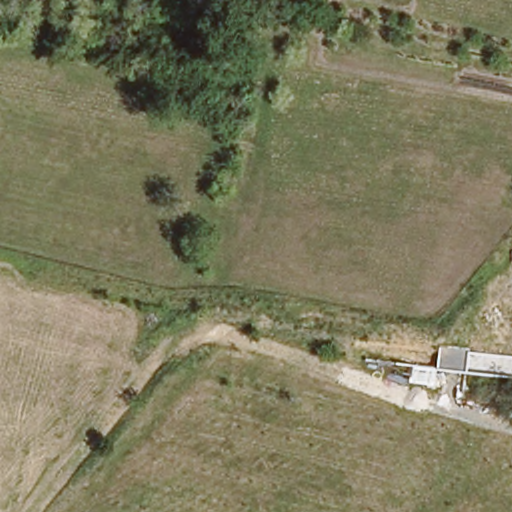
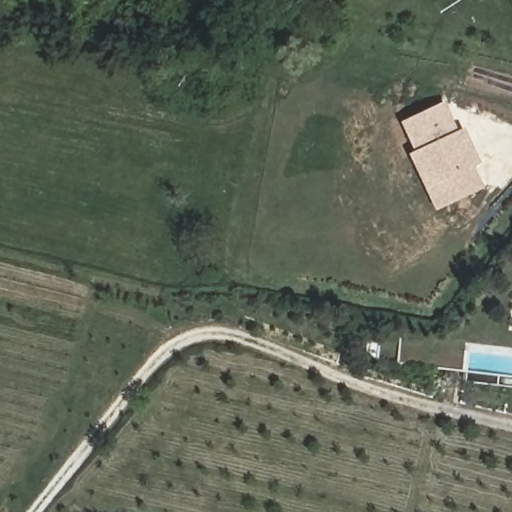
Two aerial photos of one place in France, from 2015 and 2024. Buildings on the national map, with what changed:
new [(412,151),(399,122),(444,101),(457,131),(462,129),(479,164),(473,167),(483,188),(435,212),(425,192),(407,155),(412,151)]

